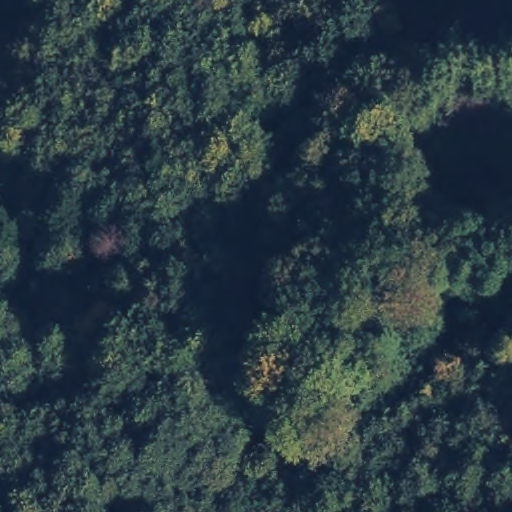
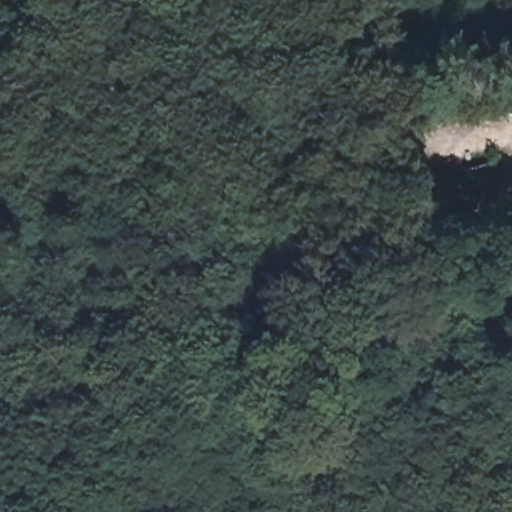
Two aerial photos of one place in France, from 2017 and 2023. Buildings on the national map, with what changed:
unchanged [(502,202),(432,214),(425,173),(494,162),(502,202)]

